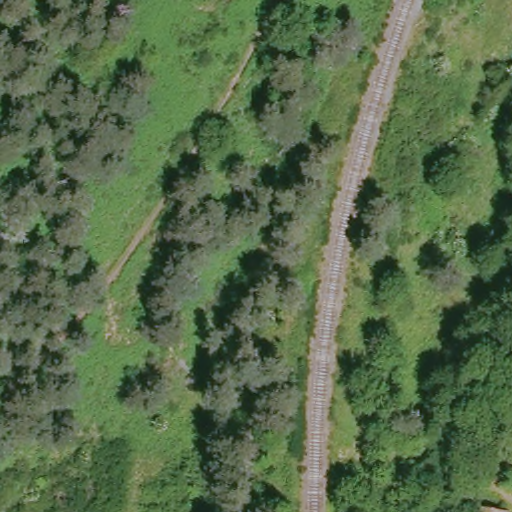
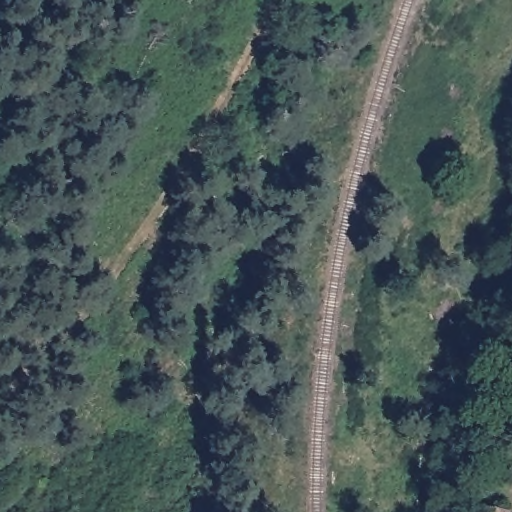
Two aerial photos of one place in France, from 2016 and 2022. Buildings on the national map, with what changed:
unchanged [(499,512),(477,512),(477,508),(499,512)]

